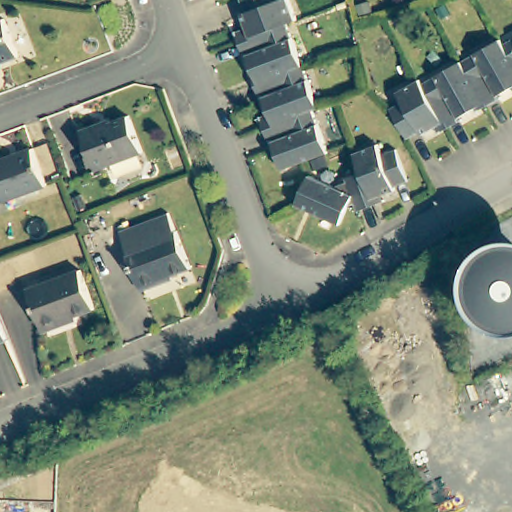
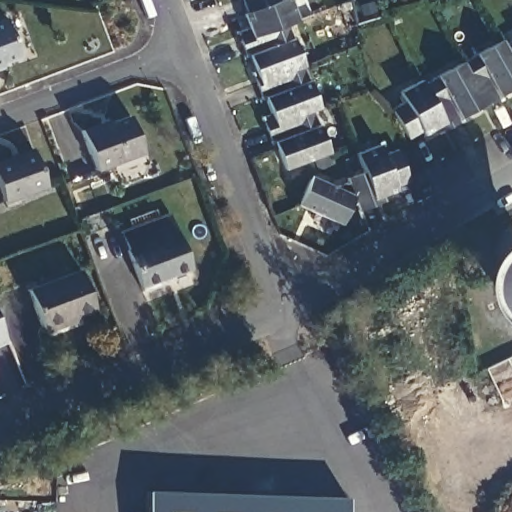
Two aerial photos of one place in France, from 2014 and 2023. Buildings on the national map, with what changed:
unchanged [(260,94),(256,81),(250,66),(254,65),(248,50),(245,51),(240,36),(239,36),(236,27),(248,22),(242,9),(246,7),(243,0),(292,0),(298,15),(287,20),(303,61),(319,103),(314,105),(313,105),(329,148),(284,165),(276,145),(280,143),(277,135),(274,137),(270,138),(266,125),(261,112),(270,109),(264,92),(260,94)]
unchanged [(5,19),(19,56),(0,63),(0,21),(5,19)]
unchanged [(418,135),(416,131),(403,139),(401,137),(386,109),(399,101),(393,92),(416,80),(418,84),(457,62),(496,40),(499,45),(512,38),(512,90),(510,87),(494,95),(496,99),(482,106),(473,112),(471,109),(455,117),(457,121),(443,129),(434,134),(430,128),(418,135)]
unchanged [(100,124),(101,126),(129,116),(143,152),(96,170),(82,130),(100,124)]
unchanged [(375,205),(358,211),(356,204),(349,207),(341,225),(297,205),(311,176),(335,186),(347,182),(346,177),(362,172),(355,153),(379,145),(383,155),(397,149),(408,181),(395,187),(396,191),(383,195),(385,201),(375,205)]
unchanged [(32,149),(46,186),(3,201),(0,193),(0,160),(32,149)]
unchanged [(169,214),(176,232),(176,231),(191,269),(164,280),(165,282),(142,291),(126,250),(127,250),(120,231),(169,214)]
unchanged [(80,270),(94,310),(43,328),(28,290),(80,270)]
unchanged [(7,335),(0,338),(0,319),(7,335)]
new [(347,512),(147,512),(148,490),(347,497),(347,512)]

